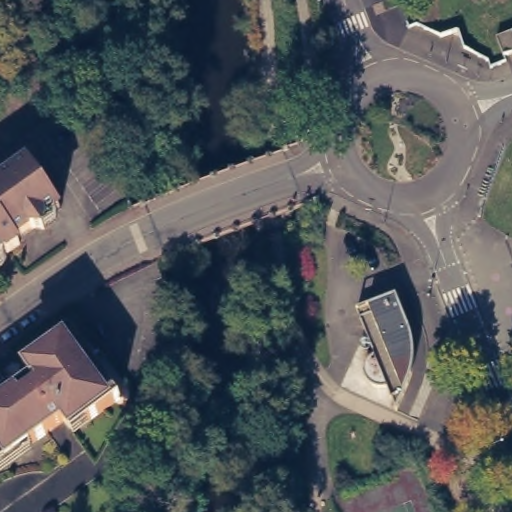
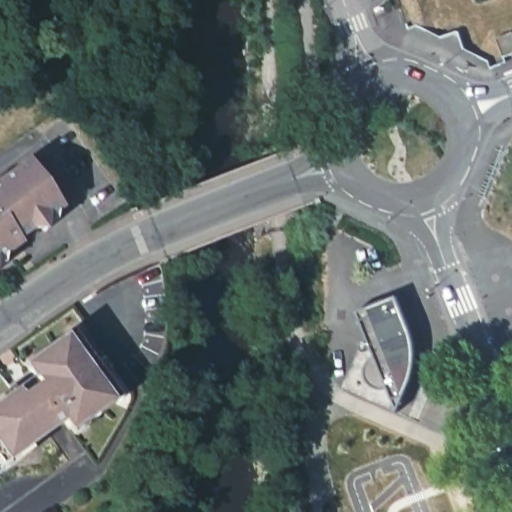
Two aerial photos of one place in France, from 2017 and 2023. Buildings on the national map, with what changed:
unchanged [(497,38),(512,33),(512,54),(504,57),(497,38)]
unchanged [(30,162),(60,204),(17,235),(20,240),(0,254),(0,184),(30,162)]
unchanged [(402,411),(401,411),(401,410),(392,388),(387,389),(382,389),(377,387),(373,383),(370,378),(370,373),(370,368),(372,363),(376,359),(380,357),(370,332),(362,311),(401,296),(416,334),(418,341),(420,352),(420,363),(417,374),(416,378),(402,411)]
unchanged [(77,326),(90,345),(89,351),(106,375),(113,377),(126,395),(93,419),(89,414),(75,425),(70,417),(35,441),(32,437),(19,446),(22,451),(7,462),(0,451),(0,405),(19,391),(17,388),(38,373),(32,366),(47,355),(43,350),(77,326)]

